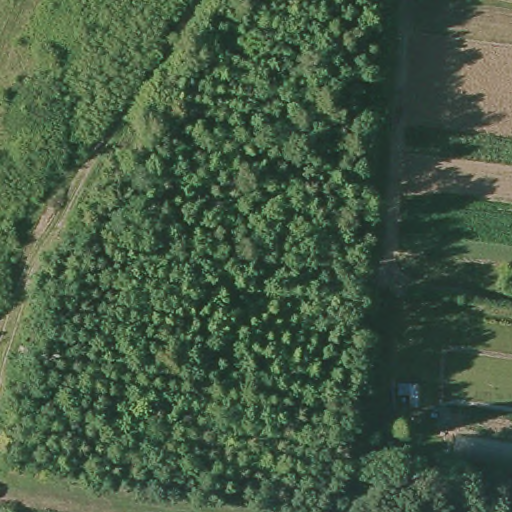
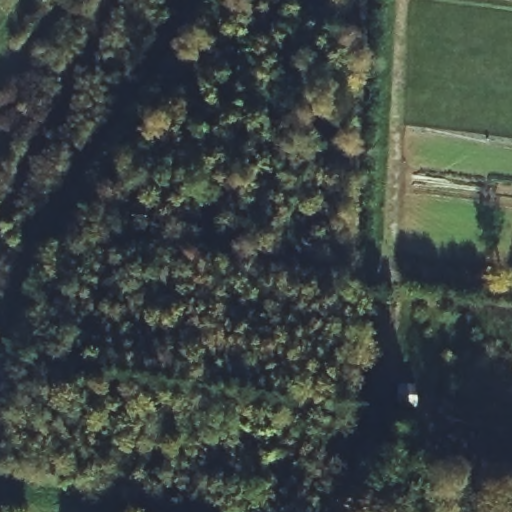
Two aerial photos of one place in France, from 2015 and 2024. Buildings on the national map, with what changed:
[]

